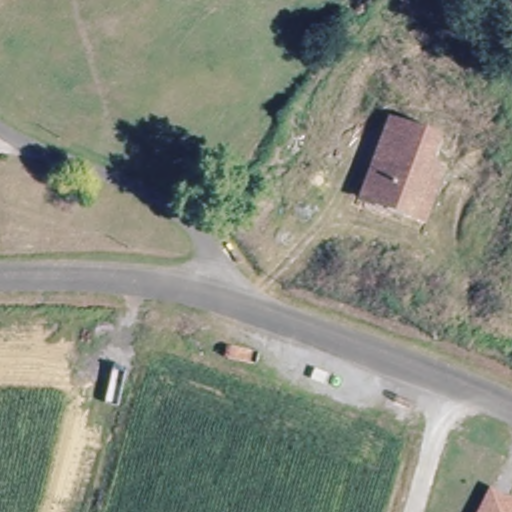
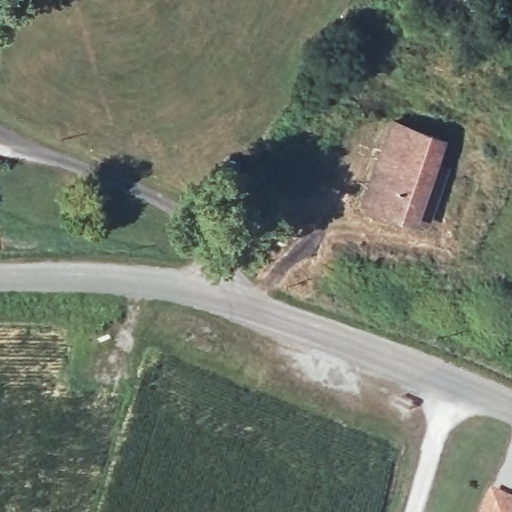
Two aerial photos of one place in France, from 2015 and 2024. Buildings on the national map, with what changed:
unchanged [(421,220),(409,216),(359,198),(389,118),(437,136),(427,160),(442,165),(421,220)]
unchanged [(496,493),(512,501),(512,512),(488,512),(496,493)]

